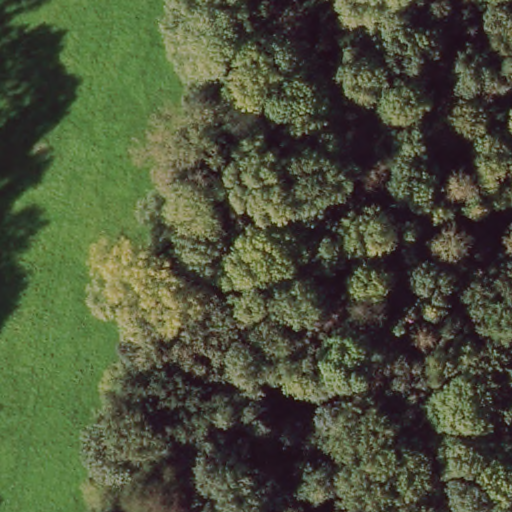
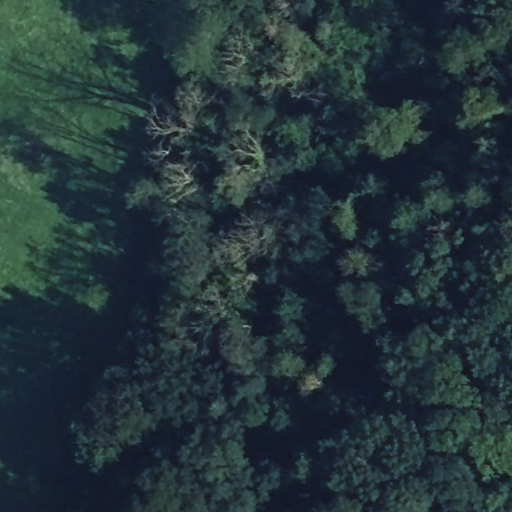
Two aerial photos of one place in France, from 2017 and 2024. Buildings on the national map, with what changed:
unchanged [(46,143),(50,149),(49,157),(40,161),(32,157),(31,150),(34,145),(40,142),(46,143)]

